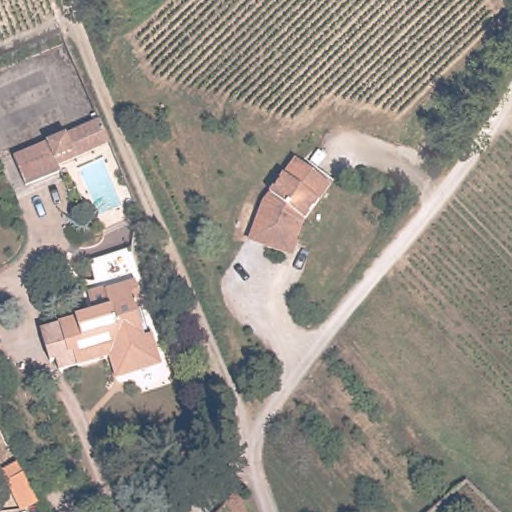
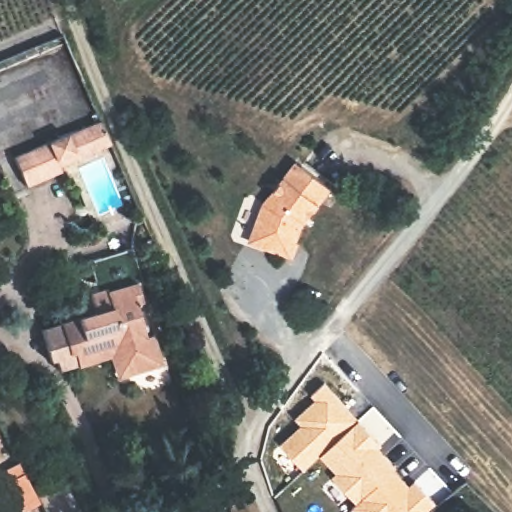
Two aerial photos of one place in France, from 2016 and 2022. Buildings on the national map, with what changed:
unchanged [(99,120),(109,142),(54,165),(45,142),(99,120)]
unchanged [(56,170),(22,185),(10,156),(45,142),(54,165),(56,170)]
unchanged [(262,196),(295,155),(331,183),(305,219),(297,237),(299,238),(293,254),(247,238),(262,196)]
unchanged [(108,356),(58,372),(55,361),(49,363),(39,332),(58,326),(57,325),(92,314),(86,295),(96,292),(86,262),(128,248),(139,280),(133,282),(139,301),(133,303),(144,337),(151,335),(160,365),(137,372),(116,379),(112,368),(108,356)]
unchanged [(1,341),(9,358),(0,363),(0,342),(1,341)]
new [(298,423),(291,417),(312,397),(308,392),(320,381),(356,419),(319,455),(301,470),(277,444),(298,423)]
new [(381,443),(377,447),(408,483),(413,478),(436,505),(428,512),(355,512),(350,507),(355,503),(330,476),(335,472),(319,455),(356,419),(381,443)]
unchanged [(7,476),(22,470),(36,495),(20,503),(7,476)]
unchanged [(247,512),(232,512),(225,505),(239,490),(247,512)]

